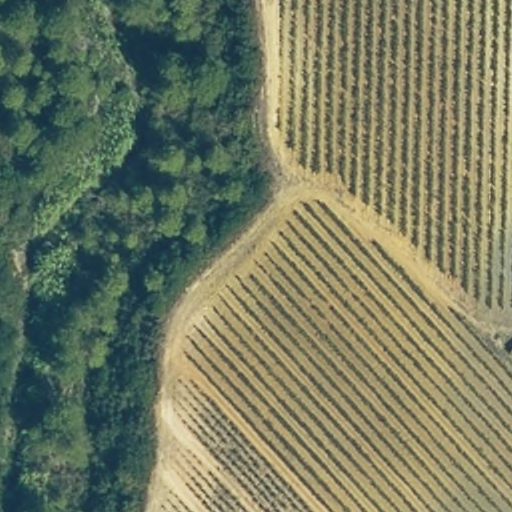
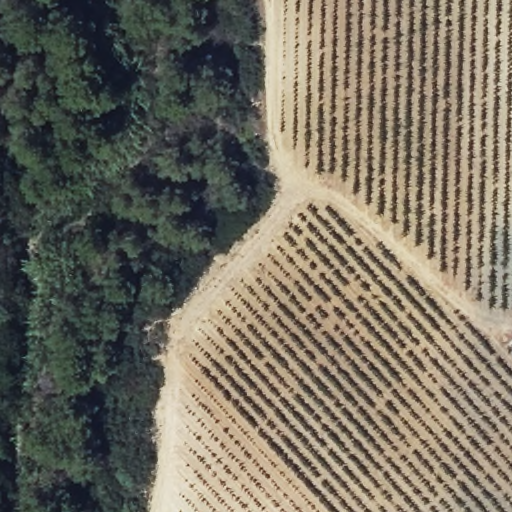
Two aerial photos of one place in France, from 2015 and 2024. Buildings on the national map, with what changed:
unchanged [(509,344),(512,342),(512,348),(509,344)]

